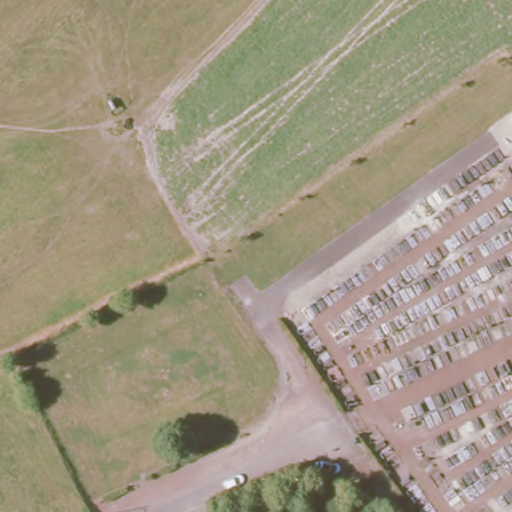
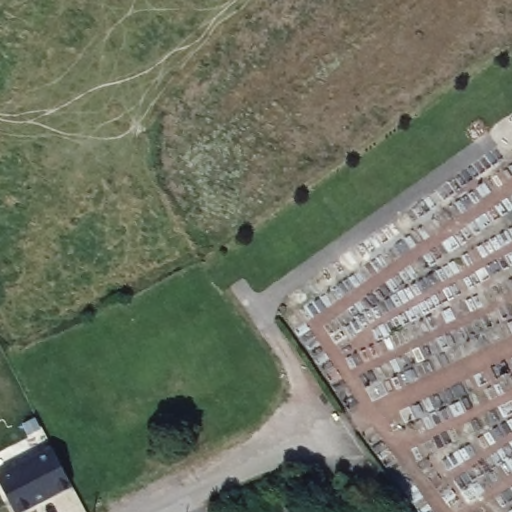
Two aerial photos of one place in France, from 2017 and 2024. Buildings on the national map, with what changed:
new [(70,484),(18,512),(14,512),(0,485),(0,473),(50,447),(70,484)]

